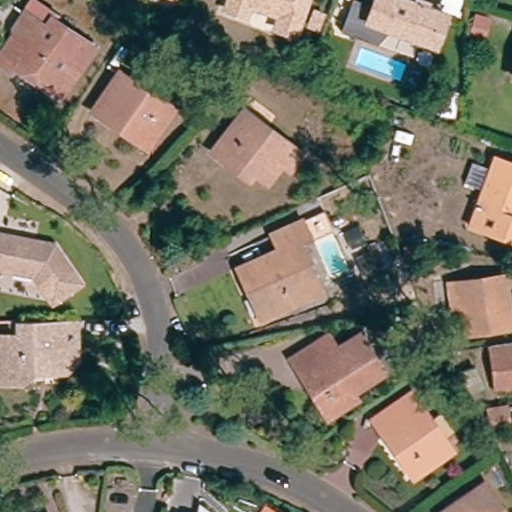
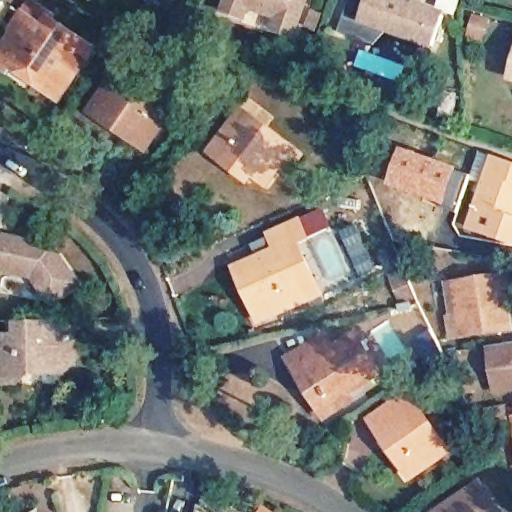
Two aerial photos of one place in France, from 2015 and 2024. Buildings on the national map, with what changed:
unchanged [(297,31),(277,25),(282,13),(251,1),(247,13),(228,7),(231,0),(308,0),(297,31)]
unchanged [(342,30),(347,15),(353,0),(358,0),(373,5),(375,0),(409,0),(416,2),(417,0),(420,0),(427,2),(426,6),(447,13),(436,43),(392,28),(378,42),(342,30)]
unchanged [(7,72),(0,67),(0,53),(10,38),(24,17),(41,28),(42,29),(47,19),(90,47),(56,97),(32,81),(11,67),(7,72)]
unchanged [(111,125),(96,115),(121,78),(175,112),(155,143),(149,151),(111,125)]
unchanged [(224,164),(208,152),(239,111),(291,149),(299,155),(287,170),(279,164),(265,183),(252,174),(247,180),(224,164)]
new [(402,148),(459,168),(446,207),(387,186),(402,148)]
unchanged [(463,232),(489,161),(512,169),(512,250),(505,247),(463,232)]
unchanged [(246,268),(272,256),(267,241),(320,217),(327,234),(294,249),(316,298),(255,323),(242,294),(233,274),(246,268)]
unchanged [(61,238),(82,268),(55,287),(42,268),(4,260),(0,275),(0,226),(61,238)]
unchanged [(512,337),(469,343),(466,318),(462,293),(471,292),(508,287),(512,310),(512,337)]
unchanged [(79,371),(66,371),(37,372),(37,381),(13,381),(12,335),(24,335),(24,321),(32,321),(88,320),(88,337),(88,362),(79,371)]
unchanged [(323,423),(297,379),(290,366),(327,345),(335,357),(357,345),(380,382),(348,401),(349,403),(352,407),(323,423)]
unchanged [(512,397),(495,400),(488,354),(512,350),(512,397)]
unchanged [(380,440),(370,426),(406,401),(447,456),(416,479),(412,482),(380,440)]
unchanged [(496,512),(449,512),(481,489),(496,512)]

